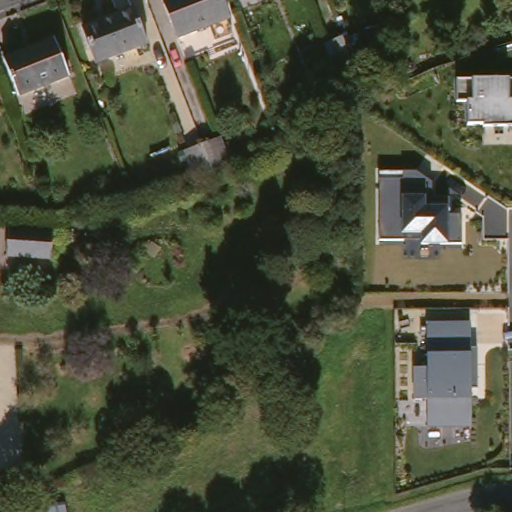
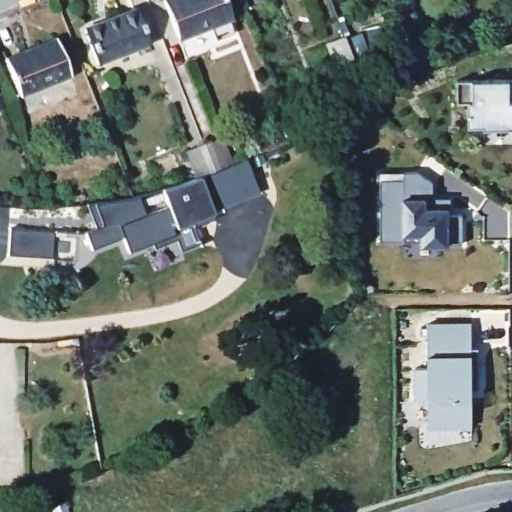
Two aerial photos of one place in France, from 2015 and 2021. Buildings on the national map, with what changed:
unchanged [(235,20),(183,39),(171,0),(228,0),(235,20)]
unchanged [(236,1),(236,0),(240,0),(236,1)]
unchanged [(140,7),(146,24),(153,45),(103,61),(91,24),(140,7)]
unchanged [(398,25),(388,60),(370,56),(378,22),(398,25)]
unchanged [(335,30),(347,26),(356,52),(335,59),(326,33),(335,30)]
unchanged [(20,50),(64,36),(77,74),(23,94),(11,54),(20,50)]
unchanged [(509,131),(509,125),(462,126),(462,102),(454,102),(454,77),(512,77),(512,131),(509,131)]
unchanged [(0,104),(0,96),(2,104),(0,104)]
unchanged [(217,143),(227,169),(211,177),(192,183),(182,156),(200,150),(217,143)]
new [(244,161),(258,196),(211,212),(212,217),(192,225),(198,243),(179,250),(174,236),(128,254),(121,237),(89,250),(83,234),(93,230),(85,205),(137,196),(144,215),(164,205),(159,189),(192,183),(211,176),(227,169),(244,161)]
unchanged [(417,169),(431,182),(431,196),(448,197),(448,214),(460,215),(460,245),(417,244),(416,234),(402,235),(401,240),(379,240),(378,169),(417,169)]
unchanged [(27,221),(59,225),(55,258),(11,254),(16,220),(27,221)]
unchanged [(468,425),(420,426),(421,400),(411,400),(412,363),(424,363),(426,320),(469,320),(468,425)]

